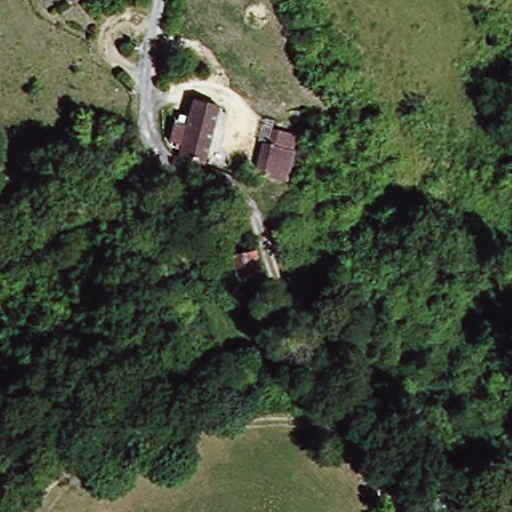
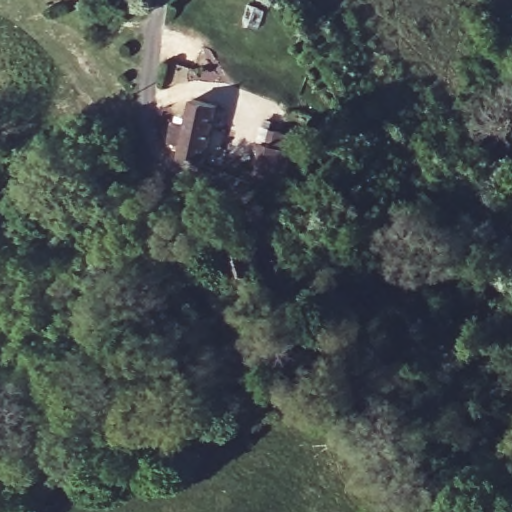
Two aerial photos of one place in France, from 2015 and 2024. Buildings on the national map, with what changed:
unchanged [(187,151),(173,146),(177,135),(181,121),(192,124),(199,100),(218,105),(205,162),(185,157),(187,151)]
unchanged [(297,137),(295,152),(288,184),(270,182),(253,177),(261,146),(271,147),(275,133),(297,137)]
unchanged [(221,282),(213,254),(242,245),(251,273),(221,282)]

